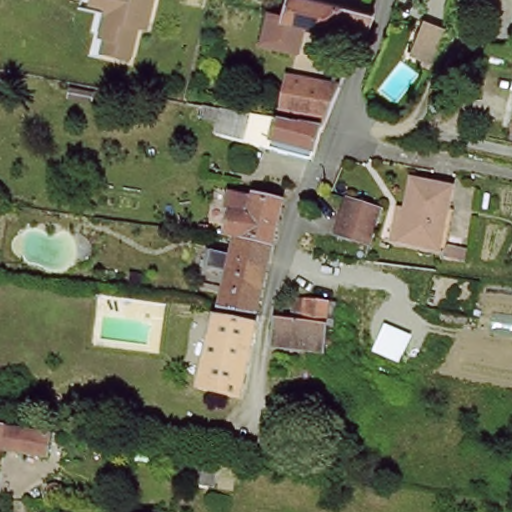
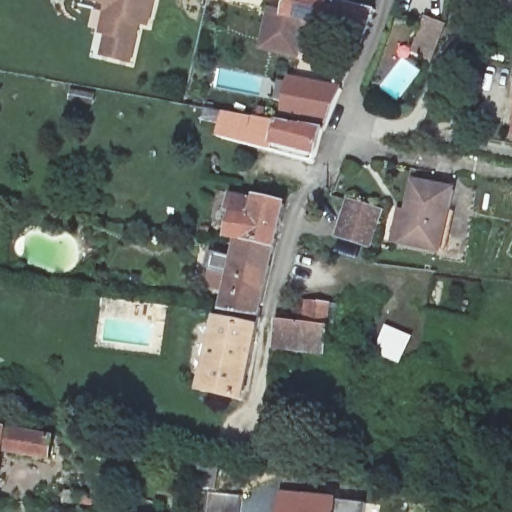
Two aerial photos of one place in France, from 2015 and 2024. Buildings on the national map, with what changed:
unchanged [(153,24),(144,22),(135,61),(108,54),(115,24),(109,22),(114,3),(102,0),(159,0),(153,24)]
unchanged [(346,54),(349,42),(306,31),(286,26),(286,23),(291,3),(370,23),(356,57),(346,54)]
unchanged [(286,23),(286,26),(306,31),(298,62),(278,56),(254,50),(263,17),(286,23)]
unchanged [(438,61),(417,52),(429,20),(450,28),(438,61)]
unchanged [(331,125),(287,116),(294,83),(343,93),(331,125)]
unchanged [(218,138),(223,114),(264,121),(323,131),(319,151),(313,164),(218,138)]
unchanged [(399,238),(418,180),(454,190),(438,249),(399,238)]
unchanged [(241,231),(228,229),(234,208),(230,207),(233,190),(258,194),(258,191),(285,197),(274,239),(241,231)]
unchanged [(366,240),(331,226),(347,193),(380,206),(366,240)]
unchanged [(224,301),(241,231),(274,239),(259,308),(233,303),(224,301)]
unchanged [(290,318),(293,299),(301,300),(331,304),(323,351),(271,343),(277,316),(290,318)]
unchanged [(243,391),(202,384),(216,313),(231,315),(233,306),(233,303),(259,308),(243,391)]
unchanged [(51,461),(4,453),(0,482),(0,431),(54,439),(51,461)]
unchanged [(193,489),(197,469),(221,474),(216,494),(193,489)]
new [(338,497),(338,499),(336,512),(275,512),(279,490),(338,497)]
new [(366,503),(365,512),(336,512),(338,499),(366,503)]

